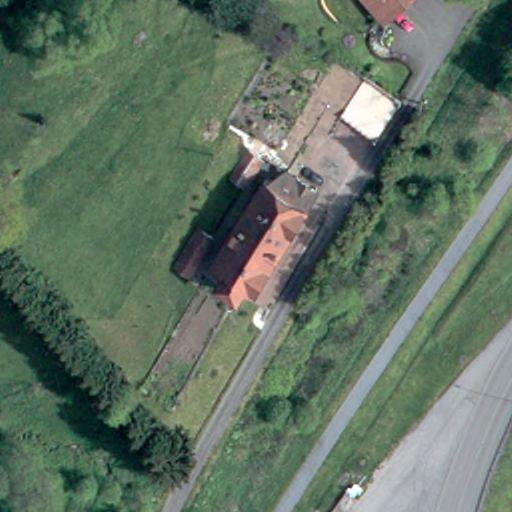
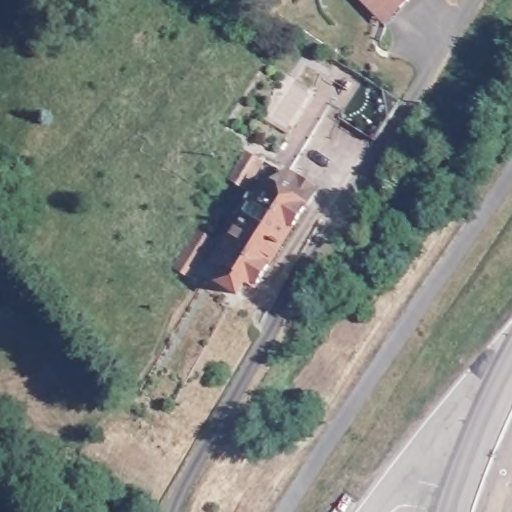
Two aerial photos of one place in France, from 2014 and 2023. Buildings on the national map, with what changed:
unchanged [(369,0),(403,0),(386,17),(369,0)]
unchanged [(331,114),(359,74),(369,81),(396,97),(367,135),(331,114)]
unchanged [(245,160),(258,167),(241,195),(229,187),(245,160)]
unchanged [(246,287),(239,300),(219,288),(227,276),(215,267),(265,187),(277,195),(282,186),(292,192),(297,185),(316,196),(305,213),(255,293),(246,287)]
unchanged [(199,236),(212,244),(189,281),(176,272),(199,236)]

